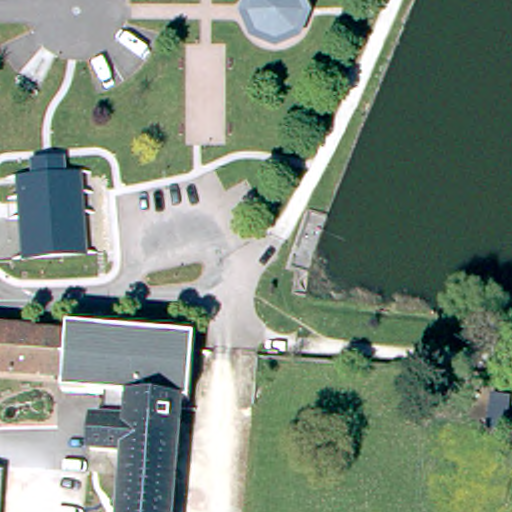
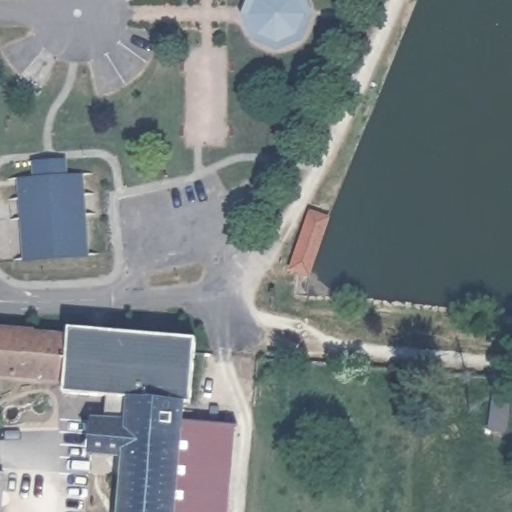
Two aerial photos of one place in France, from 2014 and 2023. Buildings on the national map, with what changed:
unchanged [(309,11),(299,37),(272,47),(265,45),(261,43),(247,37),(236,11),(241,0),(304,0),(309,11)]
unchanged [(86,257),(24,261),(19,180),(35,180),(34,169),(63,166),(64,177),(80,176),(86,257)]
new [(331,215),(310,276),(288,269),(309,208),(331,215)]
unchanged [(172,512),(122,512),(127,452),(97,450),(98,418),(107,419),(109,393),(64,391),(65,375),(0,372),(0,325),(66,330),(67,325),(195,335),(194,350),(189,403),(181,402),(172,512)]
new [(172,512),(180,421),(235,426),(228,512),(172,512)]
unchanged [(1,512),(0,512),(0,471),(4,471),(1,512)]

